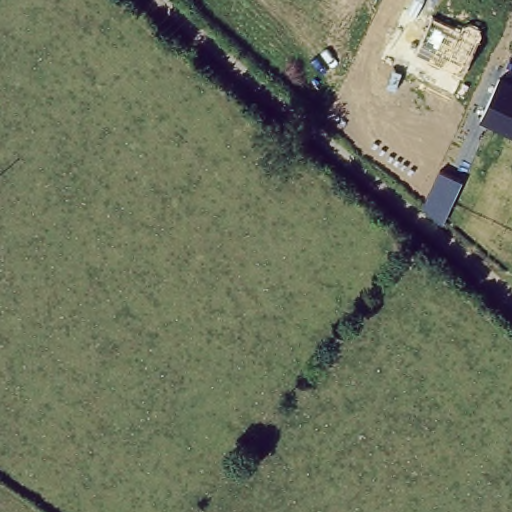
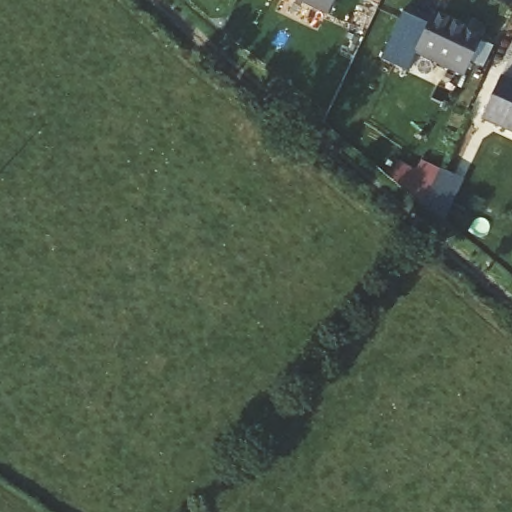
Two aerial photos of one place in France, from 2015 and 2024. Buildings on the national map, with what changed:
new [(297,0),(334,0),(327,14),(297,0)]
new [(403,7),(430,19),(432,15),(461,28),(463,24),(470,21),(479,25),(481,31),(462,74),(415,52),(407,70),(380,58),(403,7)]
unchanged [(512,82),(512,135),(480,120),(500,76),(512,82)]
unchanged [(463,181),(445,224),(423,206),(439,170),(463,181)]

